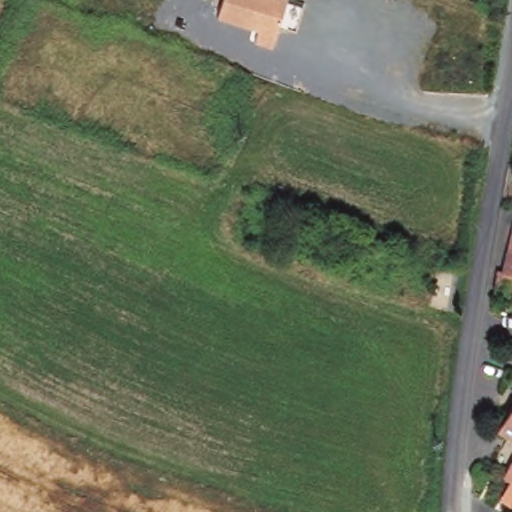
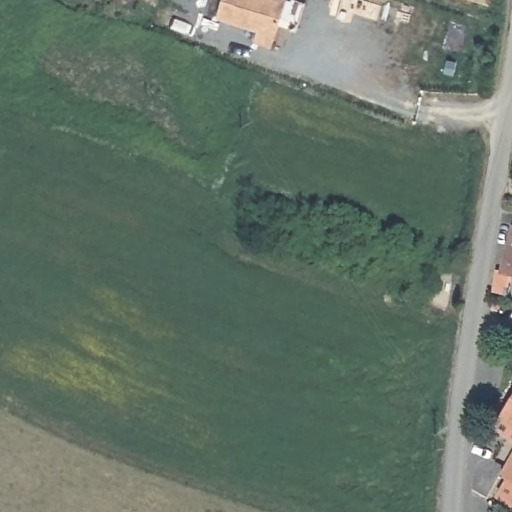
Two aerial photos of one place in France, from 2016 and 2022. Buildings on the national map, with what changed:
unchanged [(273,47),(253,42),(257,31),(218,15),(223,0),(287,0),(273,47)]
unchanged [(494,292),(494,290),(497,270),(501,271),(512,228),(512,279),(508,296),(494,292)]
unchanged [(512,404),(512,439),(496,429),(512,404)]
unchanged [(509,481),(502,477),(503,475),(512,459),(512,503),(500,497),(509,481)]

